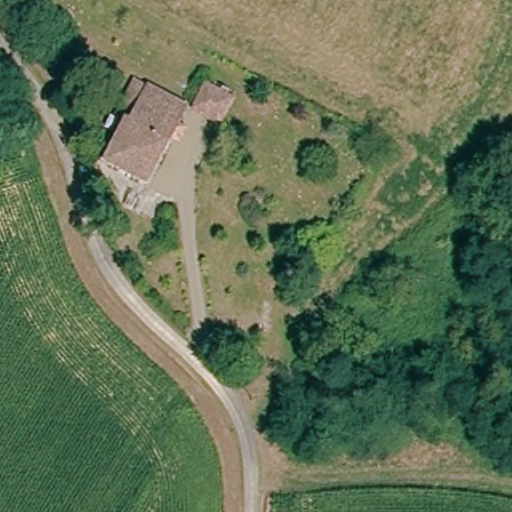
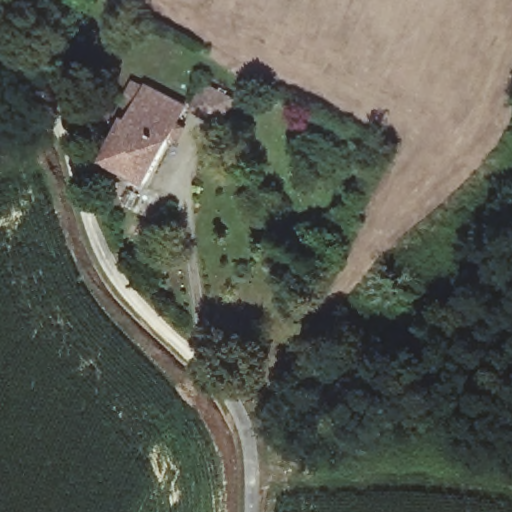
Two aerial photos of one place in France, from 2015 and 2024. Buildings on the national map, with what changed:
unchanged [(212,124),(185,109),(199,82),(227,98),(212,124)]
unchanged [(116,107),(122,95),(131,99),(140,85),(179,106),(170,121),(170,123),(177,127),(171,139),(164,135),(137,183),(97,160),(122,112),(116,107)]

